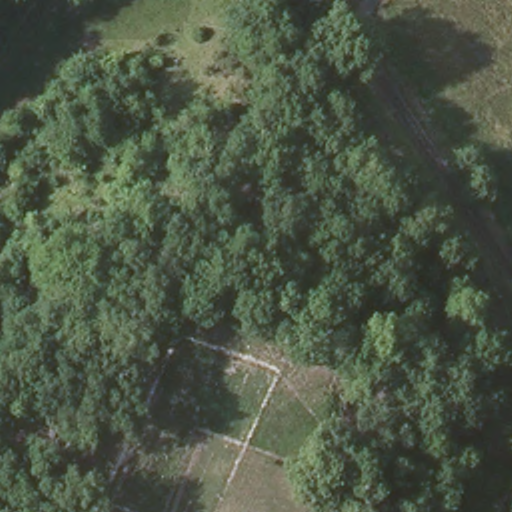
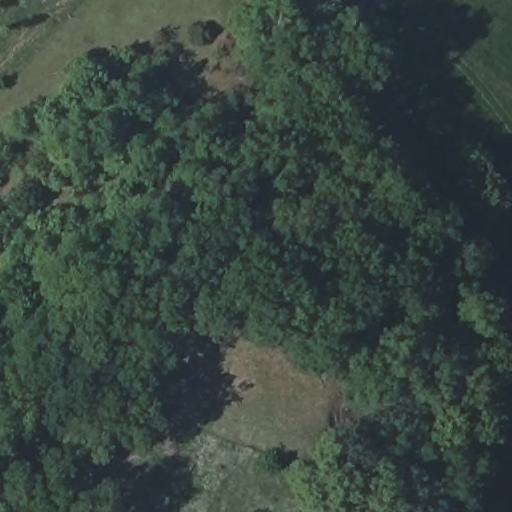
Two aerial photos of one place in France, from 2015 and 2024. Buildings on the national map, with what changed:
[]

